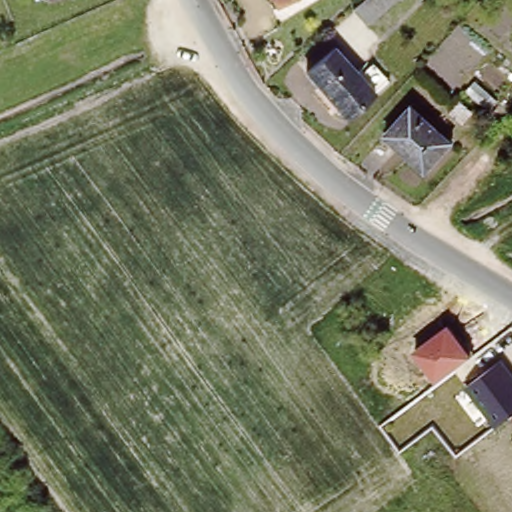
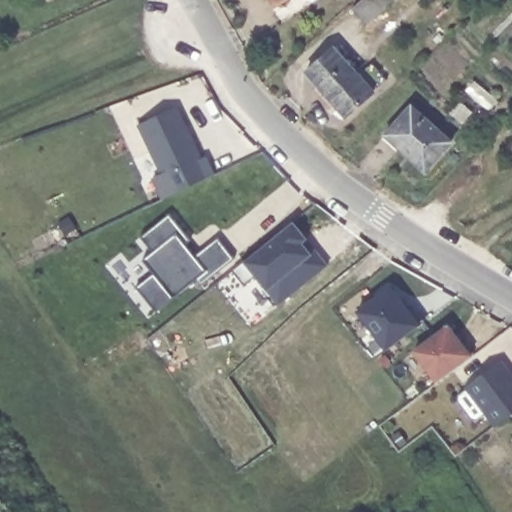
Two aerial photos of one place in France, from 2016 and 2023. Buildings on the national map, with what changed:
unchanged [(272,0),(279,0),(274,3),(272,0)]
unchanged [(364,0),(395,0),(388,6),(365,27),(352,11),(364,0)]
unchanged [(383,92),(350,121),(302,74),(339,41),(383,92)]
unchanged [(452,138),(427,167),(387,132),(412,102),(452,138)]
new [(162,201),(152,179),(162,173),(139,125),(179,106),(202,157),(207,156),(215,175),(162,201)]
new [(202,286),(197,281),(157,313),(137,288),(154,274),(143,260),(153,252),(142,238),(170,214),(191,240),(185,244),(195,257),(219,239),(234,258),(202,286)]
new [(70,217),(77,227),(67,234),(60,224),(70,217)]
new [(280,306),(267,292),(257,277),(245,286),(233,272),(245,262),(243,261),(293,222),(309,241),(329,266),(280,306)]
new [(392,291),(400,302),(402,300),(410,310),(412,308),(423,323),(385,352),(357,312),(387,288),(392,291)]
unchanged [(435,383),(412,351),(448,323),(472,357),(435,383)]
unchanged [(512,373),(512,412),(495,426),(465,387),(502,360),(512,373)]

